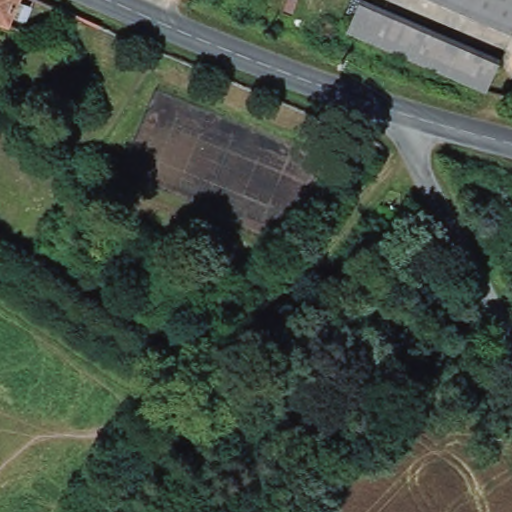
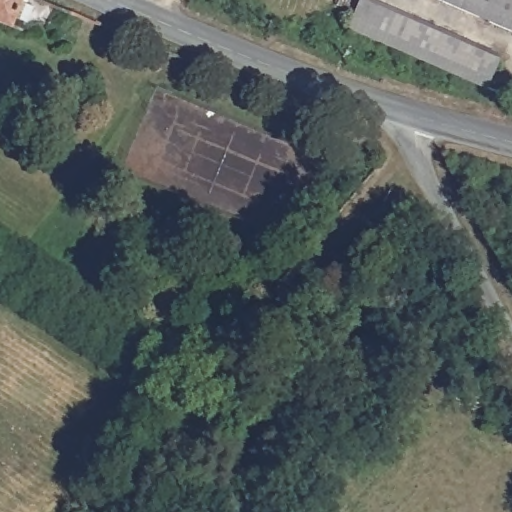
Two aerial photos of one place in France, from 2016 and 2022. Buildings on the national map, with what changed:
unchanged [(54,21),(46,27),(42,27),(38,29),(0,15),(0,0),(61,0),(64,2),(54,21)]
unchanged [(442,0),(512,0),(512,29),(512,30),(442,0)]
unchanged [(374,4),(482,52),(470,82),(361,32),(374,4)]
unchanged [(141,226),(130,246),(111,233),(123,216),(141,226)]
unchanged [(86,232),(146,268),(138,280),(79,244),(86,232)]

